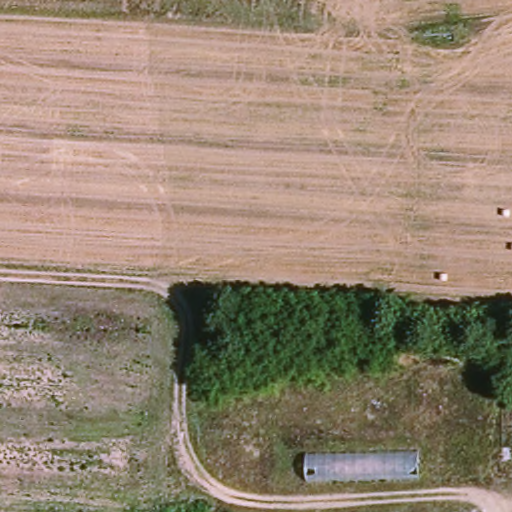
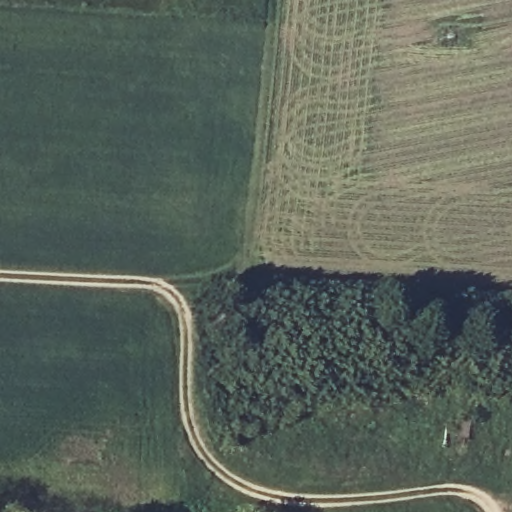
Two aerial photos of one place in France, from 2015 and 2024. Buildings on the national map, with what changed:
demolished [(417,451),(417,481),(306,481),(305,452),(417,451)]

